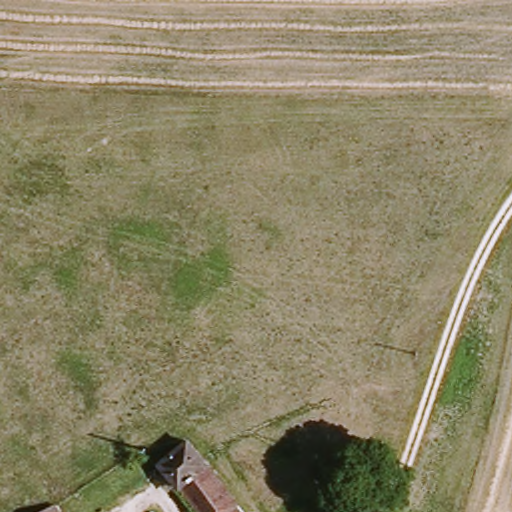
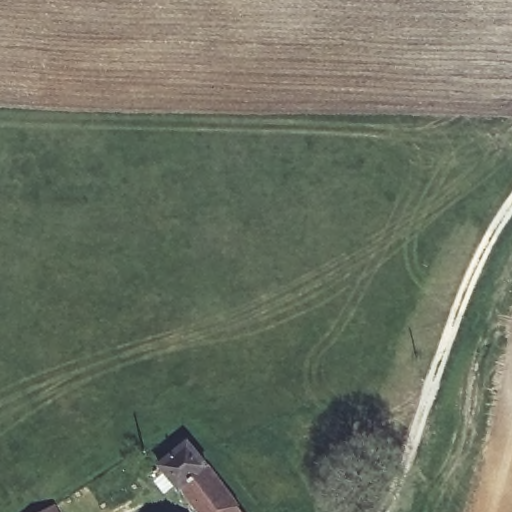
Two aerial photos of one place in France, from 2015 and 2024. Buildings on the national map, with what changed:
unchanged [(158,462),(187,441),(245,512),(197,512),(158,462)]

